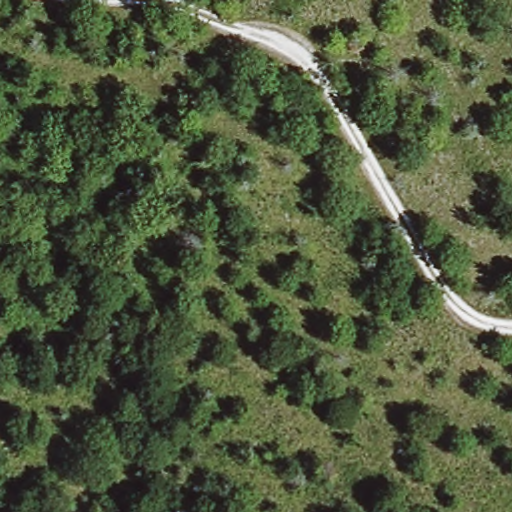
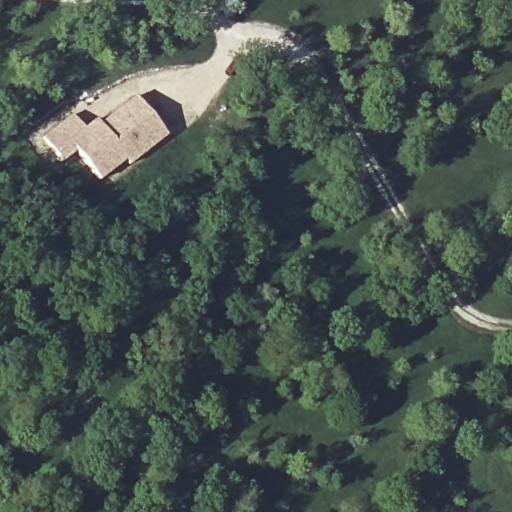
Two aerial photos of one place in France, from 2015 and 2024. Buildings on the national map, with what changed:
new [(123,162),(99,181),(75,153),(60,163),(42,138),(71,115),(83,129),(94,121),(98,127),(135,98),(166,137),(127,167),(123,162)]

